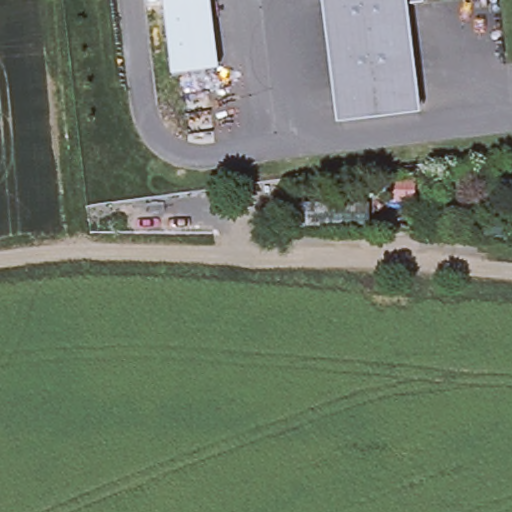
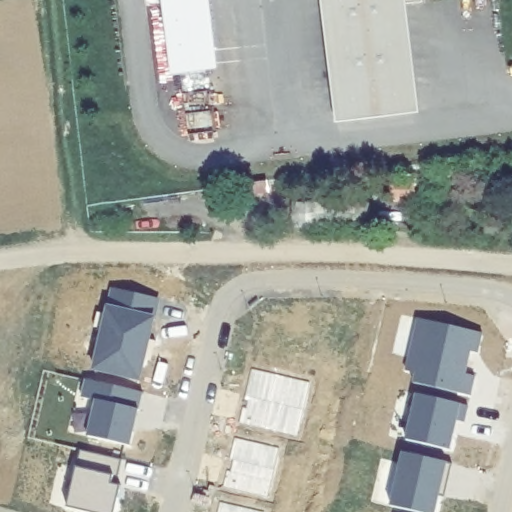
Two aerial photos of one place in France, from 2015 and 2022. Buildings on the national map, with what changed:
unchanged [(171,76),(161,0),(209,0),(218,71),(171,76)]
unchanged [(420,115),(337,125),(322,0),(407,0),(420,115)]
unchanged [(374,196),(373,225),(290,221),(289,193),(374,196)]
new [(156,299),(139,380),(92,369),(110,289),(156,299)]
new [(481,334),(478,350),(469,349),(464,374),(474,376),(470,395),(413,381),(414,371),(406,369),(417,319),(481,334)]
new [(309,383),(298,435),(239,423),(242,408),(246,409),(248,402),(245,400),(252,370),(309,383)]
new [(131,430),(129,427),(133,434),(130,448),(88,438),(96,402),(81,399),(85,381),(143,394),(138,412),(133,411),(136,411),(131,430)]
new [(467,406),(464,422),(456,420),(449,448),(405,438),(414,395),(467,406)]
new [(279,450),(268,497),(224,486),(228,471),(231,473),(234,461),(229,460),(235,440),(279,450)]
new [(114,484),(118,485),(112,512),(92,512),(65,506),(79,449),(120,459),(114,484)]
new [(435,512),(412,512),(390,507),(402,453),(452,465),(447,482),(444,499),(439,497),(435,512)]
new [(219,512),(221,504),(260,512),(219,512)]

